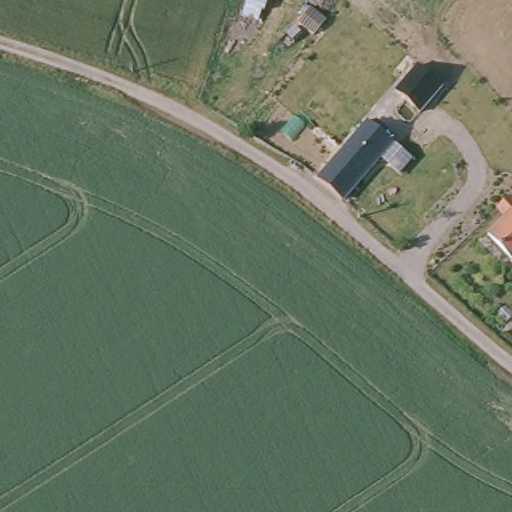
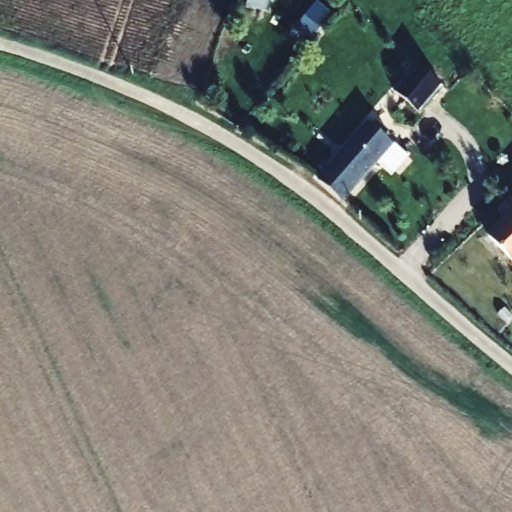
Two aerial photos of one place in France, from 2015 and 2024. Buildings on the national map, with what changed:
unchanged [(336,158),(345,165),(430,69),(448,85),(345,202),(317,180),(336,158)]
unchanged [(492,244),(488,240),(500,230),(507,222),(498,214),(512,201),(512,263),(492,244)]

